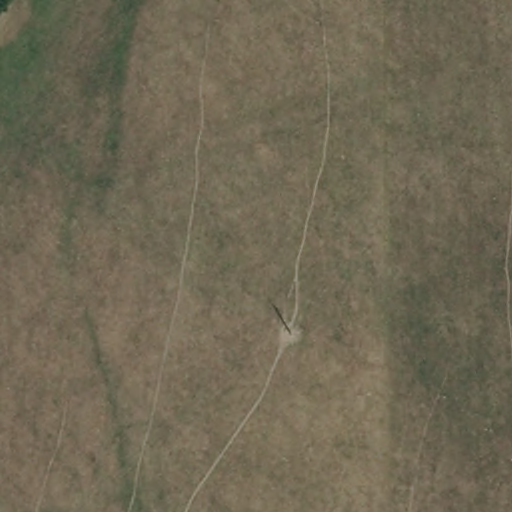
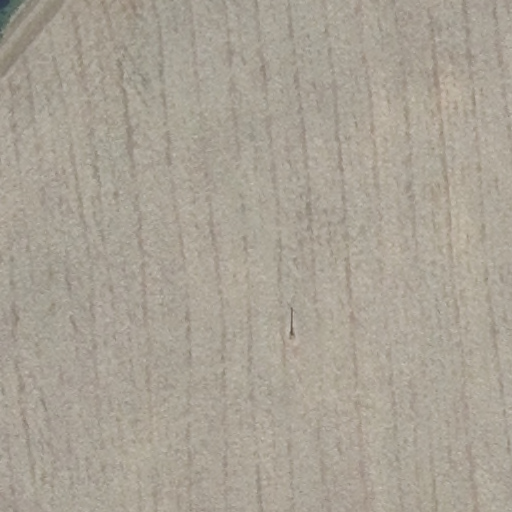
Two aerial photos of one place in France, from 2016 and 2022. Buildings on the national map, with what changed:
[]

